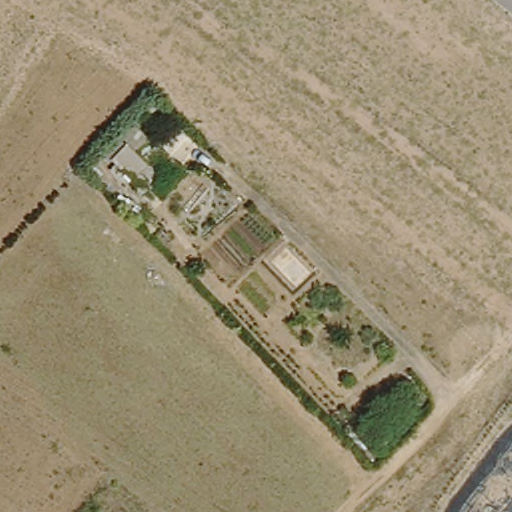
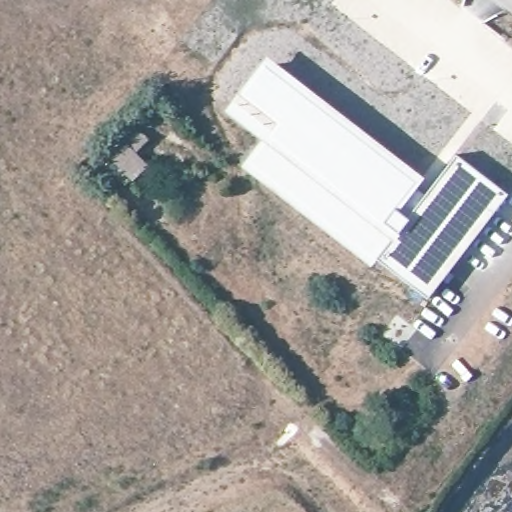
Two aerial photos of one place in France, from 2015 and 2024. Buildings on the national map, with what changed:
new [(265,55),(424,177),(410,197),(401,210),(409,216),(377,260),(370,267),(240,166),(260,139),(222,110),(265,55)]
unchanged [(129,152),(142,165),(126,180),(102,156),(130,127),(142,140),(129,152)]
new [(409,216),(401,210),(410,197),(417,202),(456,153),(507,194),(427,297),(377,260),(409,216)]

